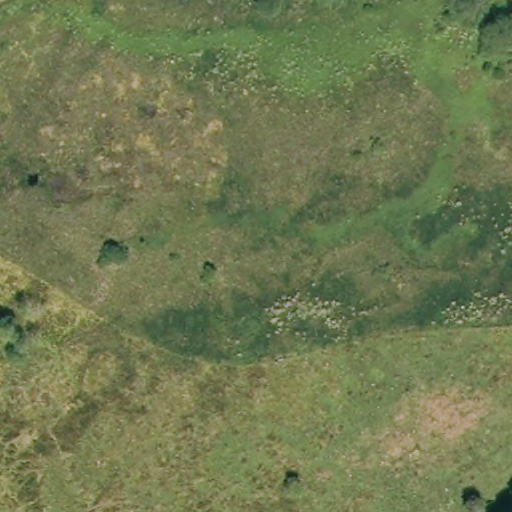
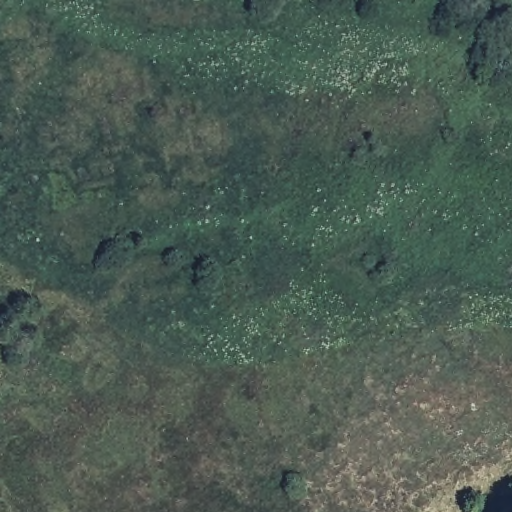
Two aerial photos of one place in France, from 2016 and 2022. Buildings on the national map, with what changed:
[]

